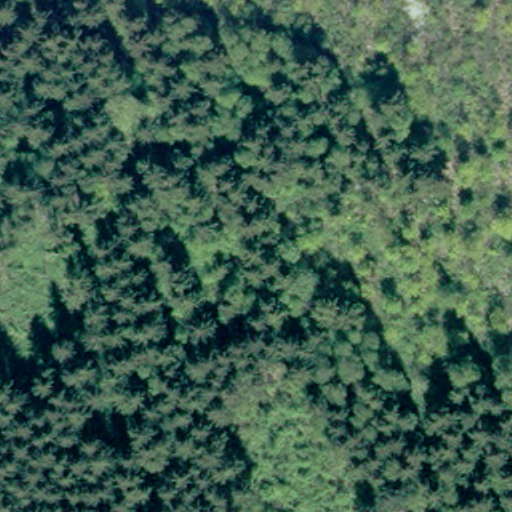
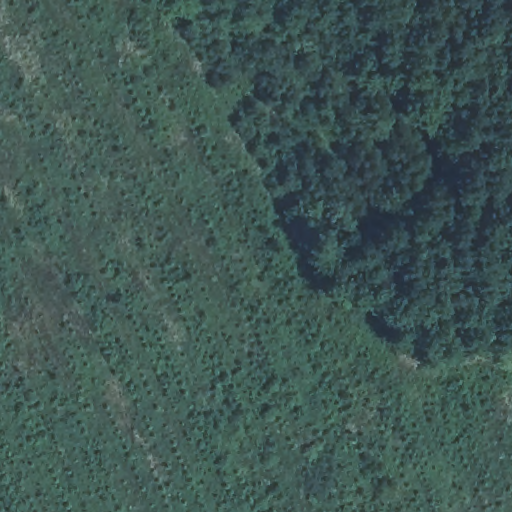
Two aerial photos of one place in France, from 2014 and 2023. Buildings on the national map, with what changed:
[]

